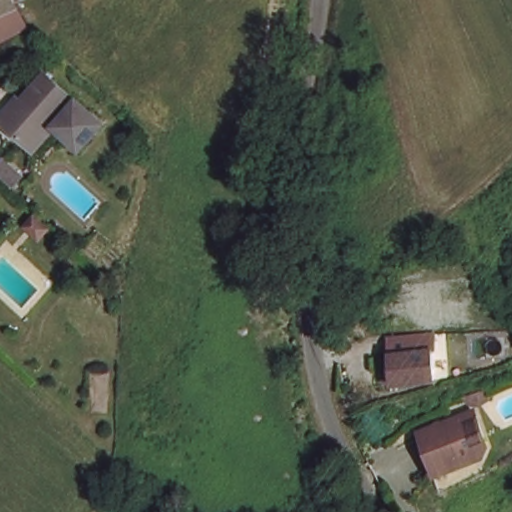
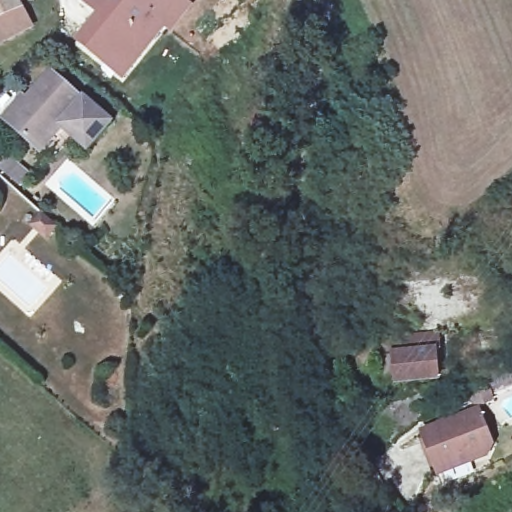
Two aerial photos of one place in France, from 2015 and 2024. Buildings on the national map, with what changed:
unchanged [(0,36),(0,34),(0,0),(14,0),(31,20),(0,36)]
new [(82,42),(95,26),(103,32),(112,21),(86,0),(133,0),(164,25),(133,65),(124,76),(109,63),(82,42)]
new [(171,30),(164,25),(133,0),(186,0),(191,4),(171,30)]
unchanged [(115,124),(93,150),(65,127),(63,129),(58,126),(40,144),(3,113),(21,92),(26,96),(49,70),(115,124)]
unchanged [(34,180),(23,191),(5,175),(16,165),(34,180)]
unchanged [(46,212),(53,217),(41,230),(29,219),(40,206),(46,212)]
unchanged [(436,379),(426,380),(395,384),(392,354),(422,350),(424,363),(434,362),(436,379)]
unchanged [(491,445),(487,454),(438,474),(421,431),(477,409),(491,445)]

